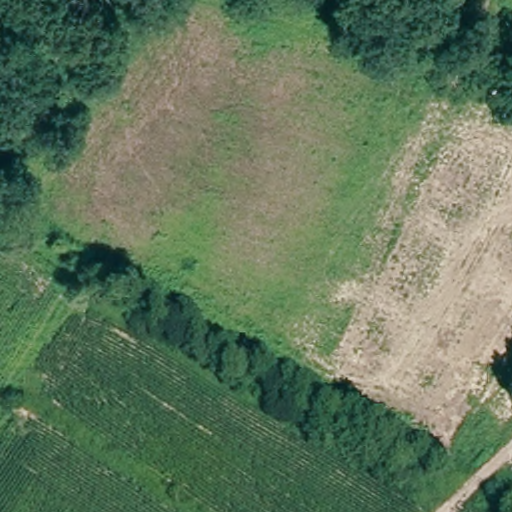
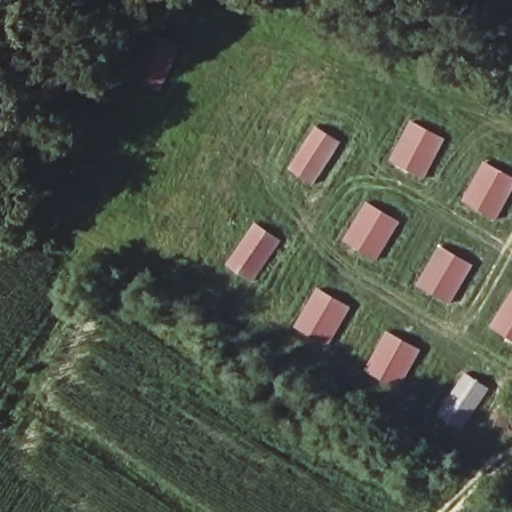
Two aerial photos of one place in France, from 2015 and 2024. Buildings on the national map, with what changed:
new [(423,178),(389,160),(410,120),(445,138),(423,178)]
new [(313,185),(288,169),(315,126),(340,141),(313,185)]
new [(461,201),(483,161),(512,177),(512,190),(495,219),(461,201)]
new [(375,260),(342,240),(366,201),(399,222),(375,260)]
new [(252,282),(226,265),(254,222),(281,241),(252,282)]
new [(450,304),(416,285),(439,245),(473,265),(450,304)]
new [(327,347),(294,327),(317,288),(350,307),(327,347)]
new [(512,291),(512,341),(489,327),(512,291)]
new [(397,388),(364,370),(386,331),(420,350),(397,388)]
new [(459,431),(435,415),(464,372),(489,389),(459,431)]

